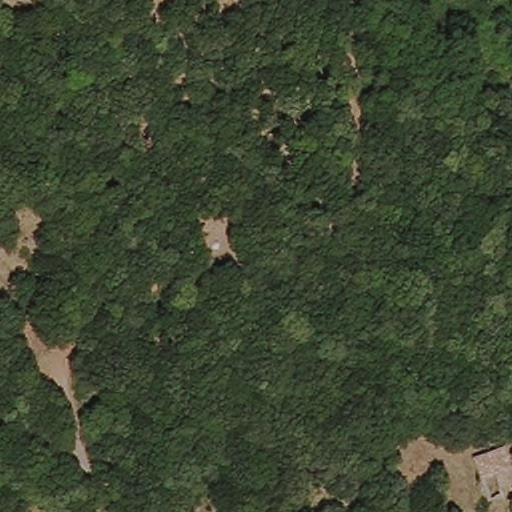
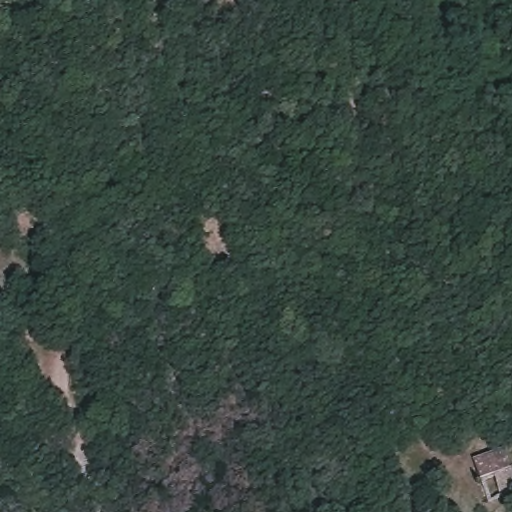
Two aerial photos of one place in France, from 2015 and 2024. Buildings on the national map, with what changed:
unchanged [(512,465),(512,484),(495,492),(480,458),(504,452),(512,465)]

